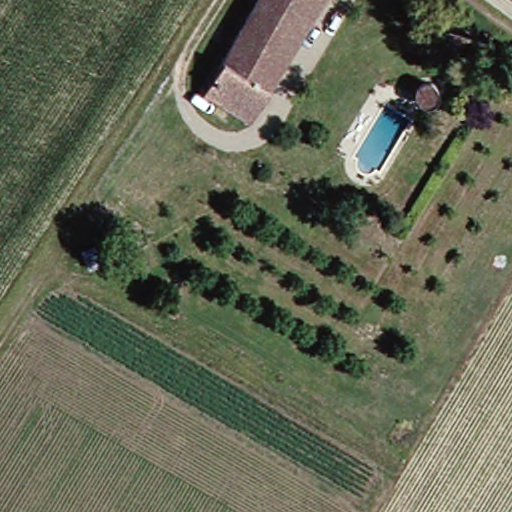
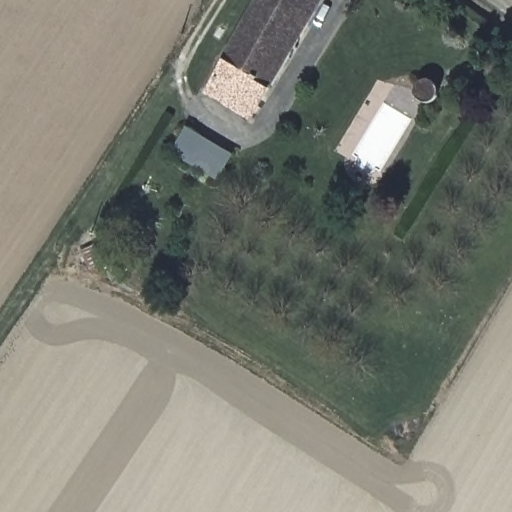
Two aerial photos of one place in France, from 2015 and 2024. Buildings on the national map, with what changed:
unchanged [(263,0),(329,0),(276,91),(226,63),(263,0)]
unchanged [(259,120),(210,92),(226,63),(276,91),(259,120)]
new [(234,155),(219,180),(172,151),(186,127),(234,155)]

